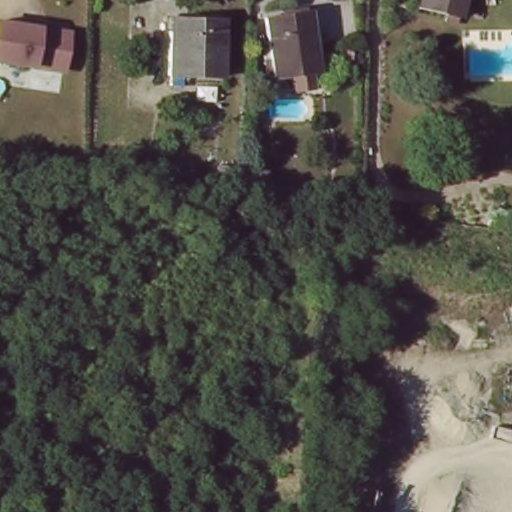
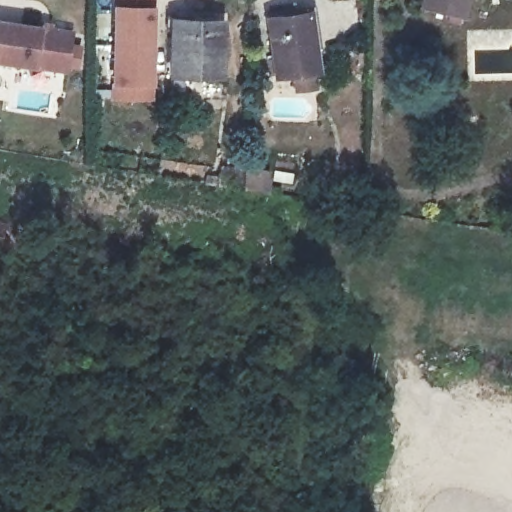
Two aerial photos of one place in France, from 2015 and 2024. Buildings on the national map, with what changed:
new [(156,0),(151,100),(115,97),(121,0),(156,0)]
unchanged [(416,4),(417,0),(462,0),(459,15),(416,4)]
unchanged [(312,12),(318,74),(271,77),(266,15),(312,12)]
unchanged [(218,20),(218,75),(168,74),(168,20),(218,20)]
unchanged [(45,32),(46,27),(56,30),(55,34),(77,37),(72,76),(0,65),(0,36),(2,26),(45,32)]
unchanged [(202,156),(225,161),(225,179),(202,176),(198,175),(202,156)]

